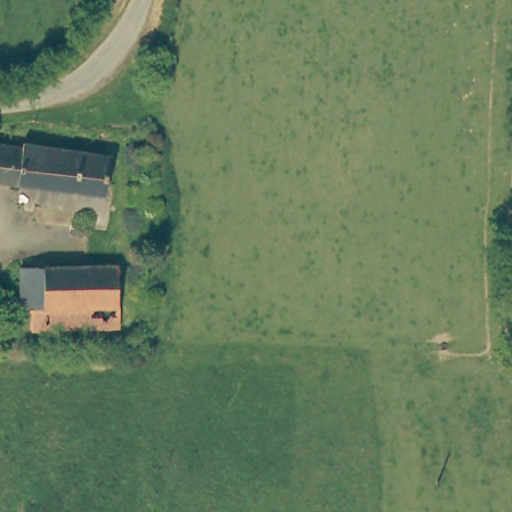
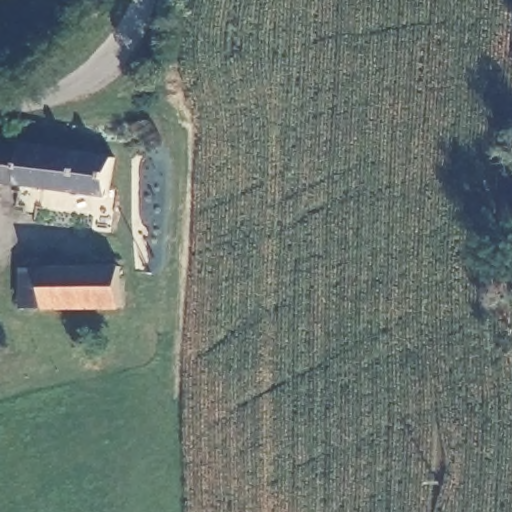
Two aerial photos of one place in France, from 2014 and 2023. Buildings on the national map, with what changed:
unchanged [(110,154),(104,195),(0,178),(0,141),(21,144),(22,140),(110,154)]
unchanged [(119,325),(30,325),(30,305),(21,305),(21,265),(118,264),(119,325)]

